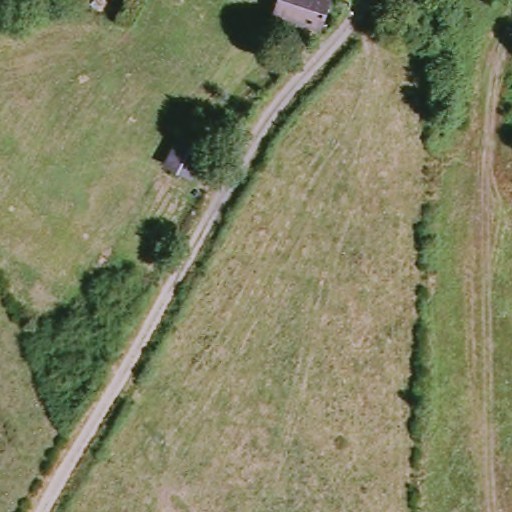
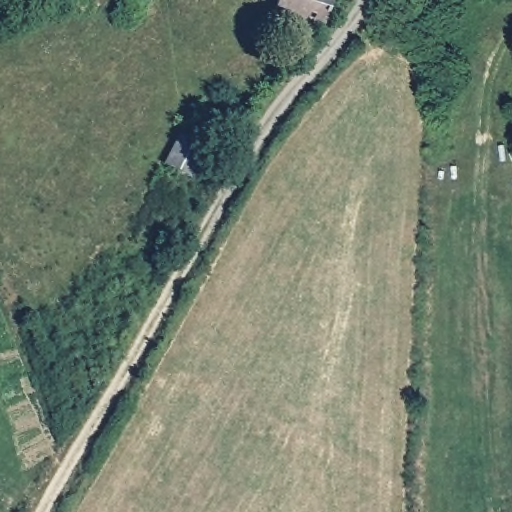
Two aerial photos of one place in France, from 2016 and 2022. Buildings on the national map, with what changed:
unchanged [(281,0),(331,0),(324,27),(277,15),(281,0)]
unchanged [(173,168),(187,139),(210,147),(195,179),(173,168)]

